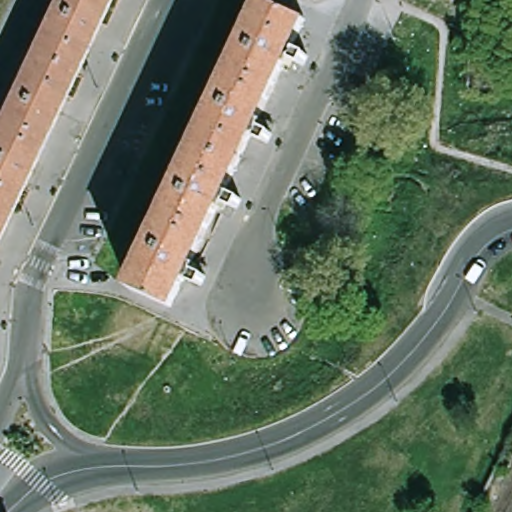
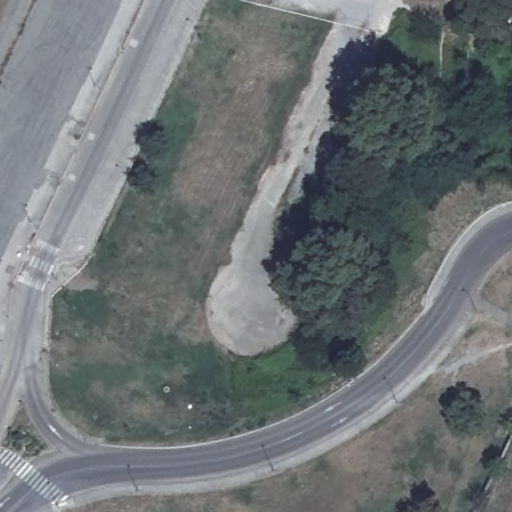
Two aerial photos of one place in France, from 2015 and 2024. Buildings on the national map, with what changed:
demolished [(18,93),(62,0),(110,0),(58,110),(18,93)]
demolished [(266,0),(271,0),(308,16),(291,53),(298,56),(292,70),(284,67),(243,48),(266,0)]
demolished [(243,48),(284,67),(258,124),(216,105),(243,48)]
demolished [(18,93),(58,110),(32,167),(0,152),(0,132),(18,93)]
demolished [(173,307),(132,288),(215,108),(216,105),(258,124),(265,128),(259,142),(251,138),(225,195),(232,199),(226,213),(218,209),(191,267),(199,271),(193,284),(185,281),(173,307)]
demolished [(0,237),(0,152),(32,167),(0,237)]

